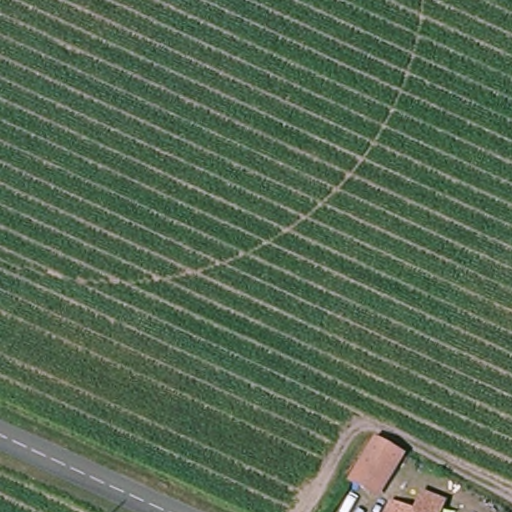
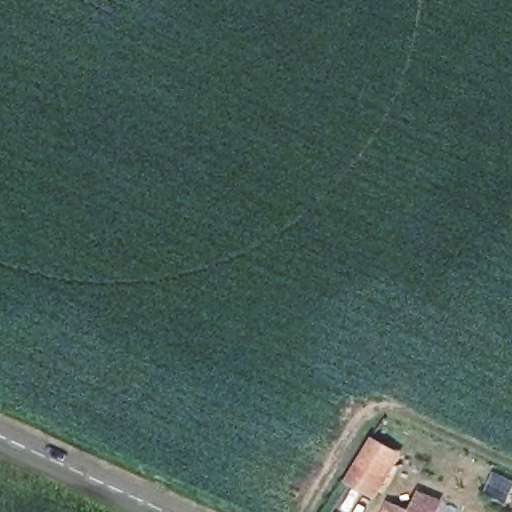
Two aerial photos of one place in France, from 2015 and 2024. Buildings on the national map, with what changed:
unchanged [(352,487),(378,447),(403,460),(389,482),(378,501),(364,493),(352,487)]
unchanged [(431,501),(445,508),(444,512),(425,512),(431,501)]
unchanged [(395,505),(410,512),(392,512),(395,505)]

